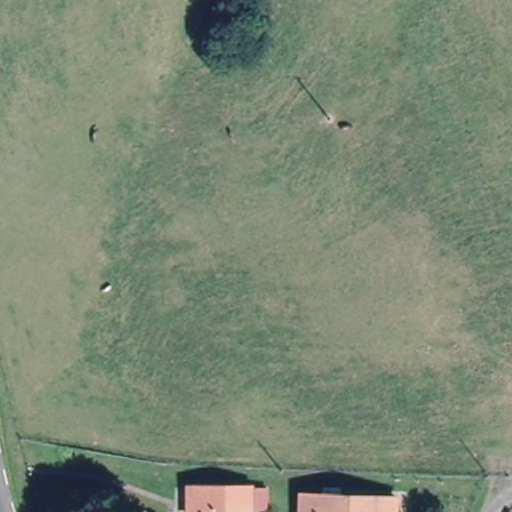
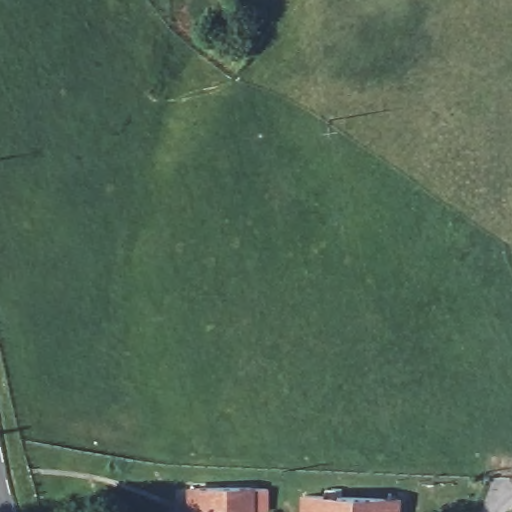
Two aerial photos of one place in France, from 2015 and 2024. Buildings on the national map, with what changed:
unchanged [(189,487),(253,487),(267,488),(267,511),(253,511),(223,511),(223,512),(190,512),(189,487)]
unchanged [(297,495),(371,497),(391,498),(391,512),(297,512),(297,495)]

